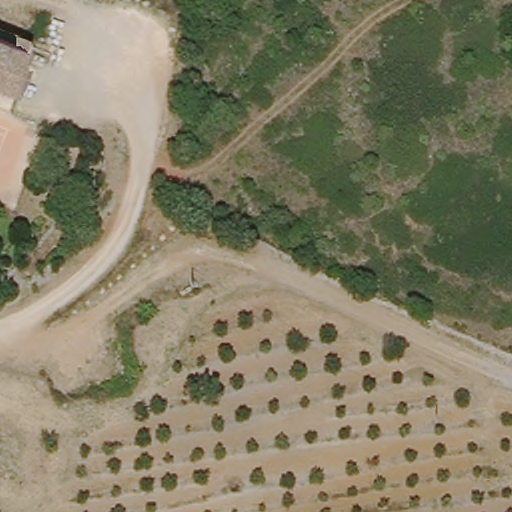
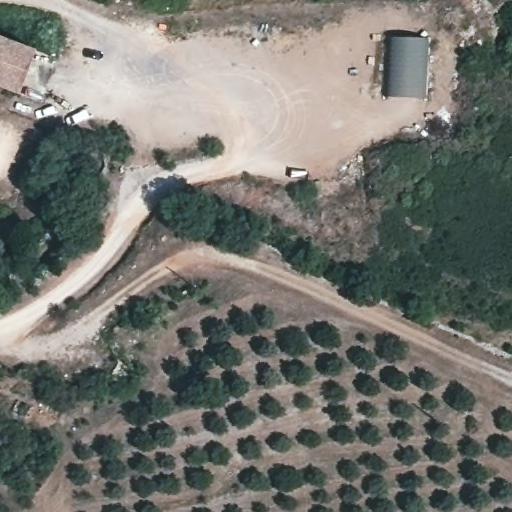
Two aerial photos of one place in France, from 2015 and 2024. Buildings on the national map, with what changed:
new [(425,99),(390,96),(391,37),(427,37),(425,99)]
unchanged [(22,105),(0,96),(0,40),(40,56),(22,105)]

